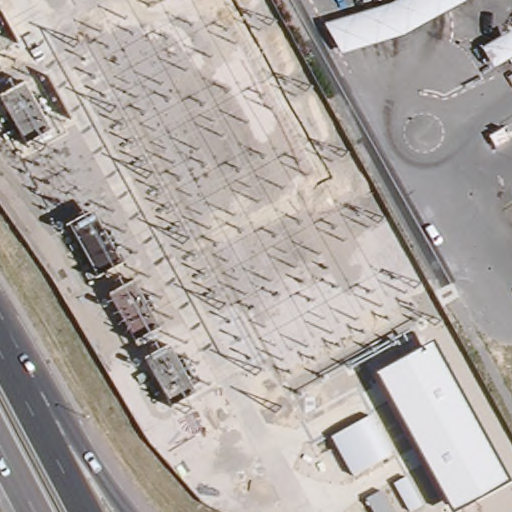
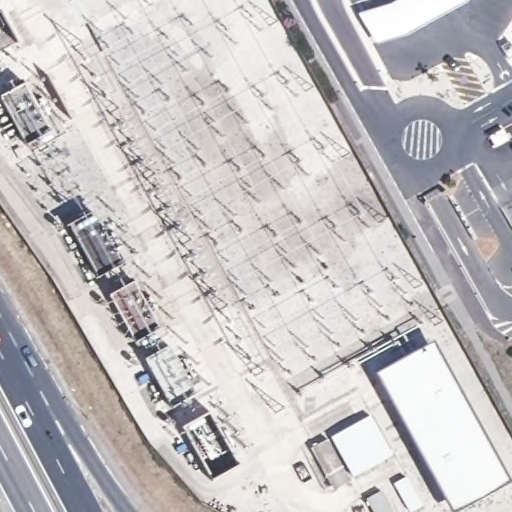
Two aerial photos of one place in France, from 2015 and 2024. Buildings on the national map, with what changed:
unchanged [(342,56),(322,22),(388,4),(395,0),(475,0),(474,1),(455,11),(416,32),(342,56)]
unchanged [(512,39),(512,58),(493,70),(480,49),(507,31),(512,39)]
unchanged [(2,98),(28,84),(54,135),(29,148),(2,98)]
unchanged [(123,267),(98,280),(72,233),(97,220),(123,267)]
unchanged [(161,333),(137,347),(110,300),(135,285),(161,333)]
unchanged [(435,340),(511,482),(456,512),(451,512),(377,374),(435,340)]
unchanged [(193,394),(169,407),(146,360),(166,350),(193,394)]
unchanged [(333,437),(370,415),(393,454),(354,476),(333,437)]
unchanged [(407,481),(423,510),(419,512),(408,512),(395,487),(407,481)]

